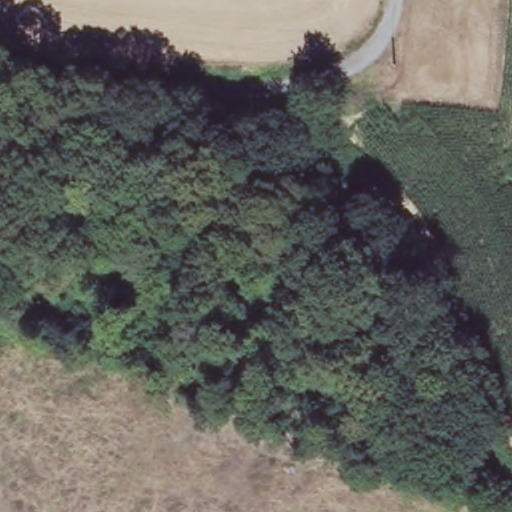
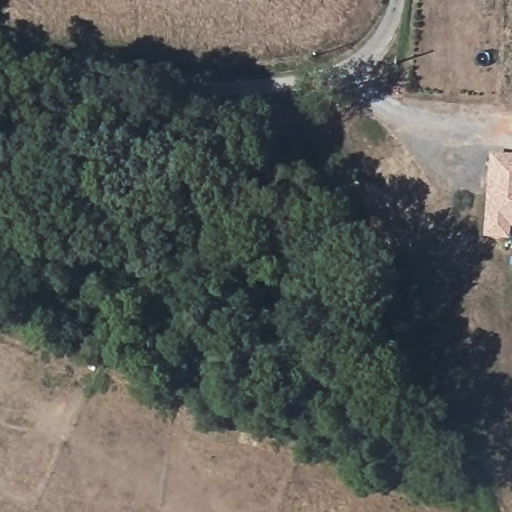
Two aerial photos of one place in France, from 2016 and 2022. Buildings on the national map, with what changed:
new [(512,229),(510,228),(510,241),(482,239),(488,153),(512,155),(512,229)]

